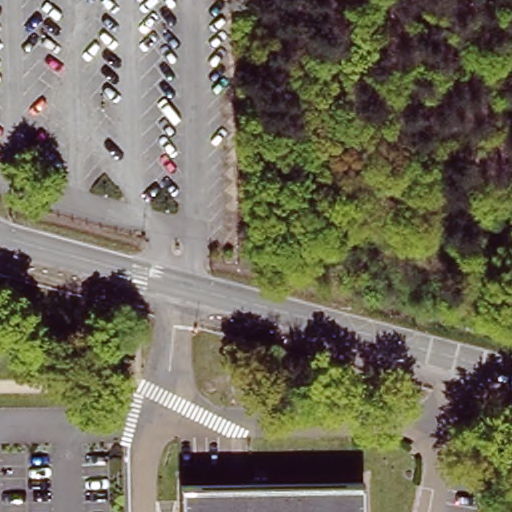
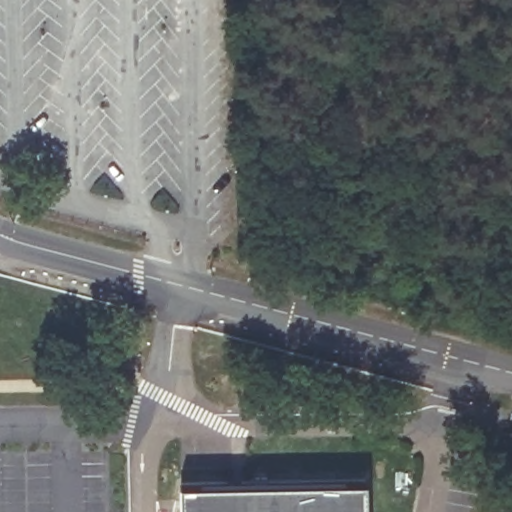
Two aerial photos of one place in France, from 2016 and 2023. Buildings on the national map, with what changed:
unchanged [(346,492),(346,512),(182,512),(182,492),(346,492)]

